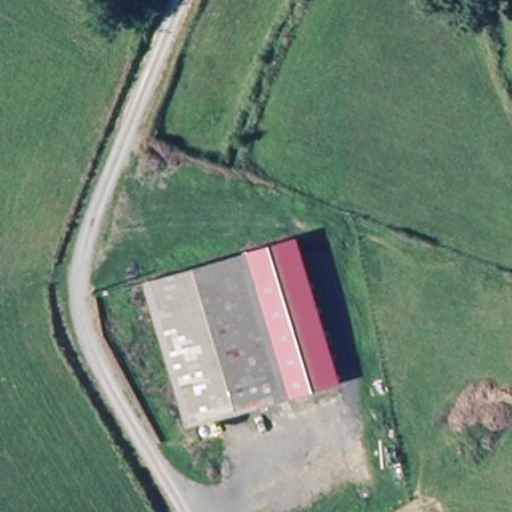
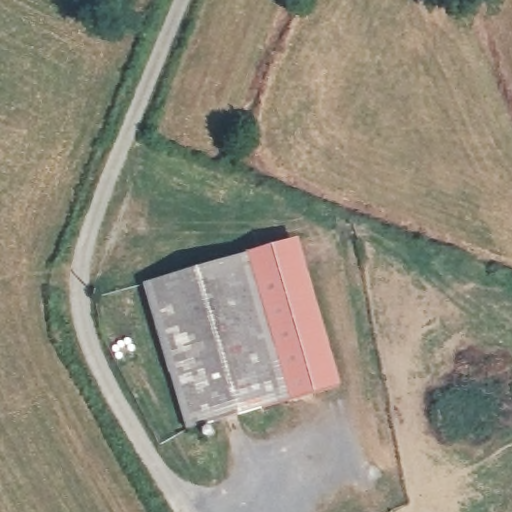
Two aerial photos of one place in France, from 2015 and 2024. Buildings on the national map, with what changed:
unchanged [(255,259),(298,245),(338,385),(288,407),(255,259)]
unchanged [(184,431),(151,285),(174,279),(255,259),(288,407),(277,410),(184,431)]

